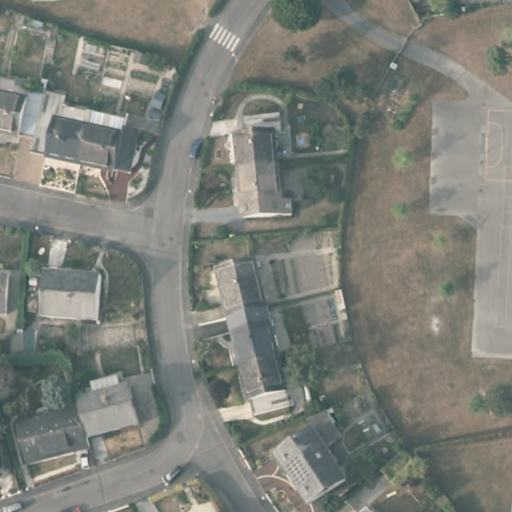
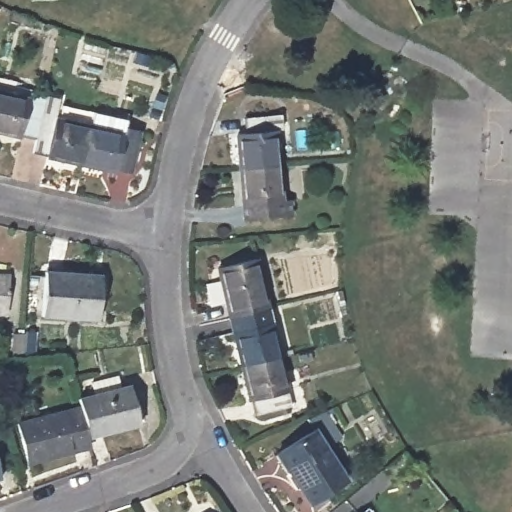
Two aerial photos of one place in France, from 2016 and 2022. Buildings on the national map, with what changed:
unchanged [(30,88),(45,91),(34,136),(0,130),(0,89),(27,94),(30,88)]
unchanged [(31,150),(34,136),(45,91),(59,95),(55,116),(89,124),(81,161),(31,150)]
unchanged [(89,124),(93,107),(129,116),(126,126),(141,129),(132,165),(118,163),(116,169),(81,161),(89,124)]
unchanged [(235,144),(243,143),(242,129),(278,125),(280,140),(274,141),(277,175),(239,179),(235,144)]
unchanged [(277,175),(283,224),(244,229),(239,179),(277,175)]
unchanged [(217,259),(254,252),(265,301),(229,310),(217,259)]
unchanged [(104,275),(100,317),(44,313),(47,272),(104,275)]
unchanged [(9,314),(0,314),(0,275),(11,275),(9,314)]
unchanged [(265,301),(275,349),(239,358),(229,310),(265,301)]
unchanged [(275,349),(286,397),(250,405),(239,358),(275,349)]
unchanged [(80,398),(130,386),(141,424),(89,438),(81,407),(80,398)]
unchanged [(74,450),(75,453),(28,465),(17,423),(81,407),(89,438),(91,446),(74,450)]
unchanged [(281,454),(317,434),(346,484),(311,505),(281,454)]
unchanged [(0,477),(0,471),(1,476),(0,477)]

